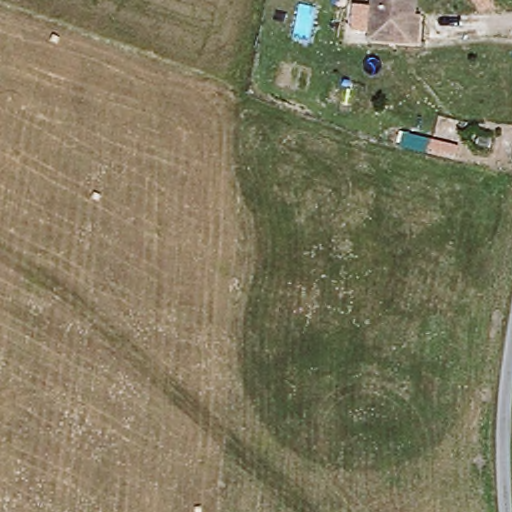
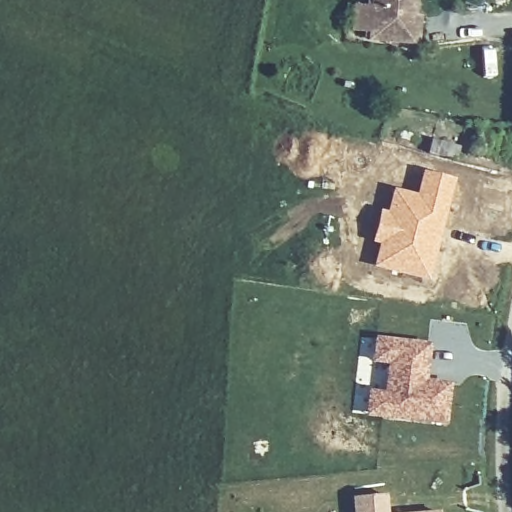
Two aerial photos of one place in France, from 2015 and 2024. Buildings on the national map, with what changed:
unchanged [(412,43),(369,39),(372,0),(416,0),(415,15),(422,15),(420,44),(412,43)]
unchanged [(491,138),(489,150),(476,148),(479,135),(491,138)]
unchanged [(459,148),(455,160),(429,154),(433,140),(459,148)]
new [(379,208),(385,209),(392,188),(415,193),(421,170),(453,179),(429,282),(372,268),(377,244),(370,243),(379,208)]
new [(385,392),(389,363),(374,362),(376,336),(430,344),(428,379),(453,383),(446,424),(368,415),(369,391),(385,392)]
new [(387,494),(388,512),(352,512),(351,497),(387,494)]
new [(438,510),(438,512),(416,512),(438,510)]

